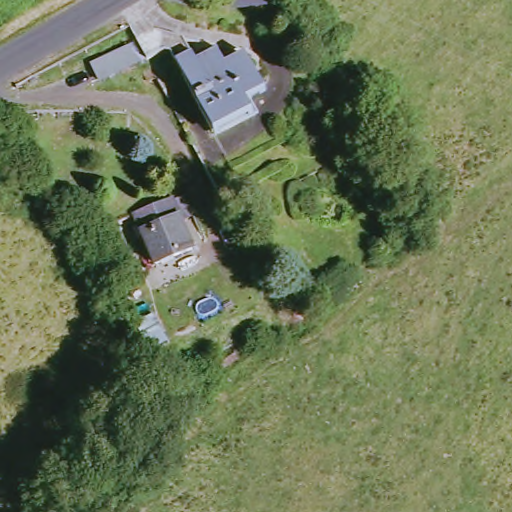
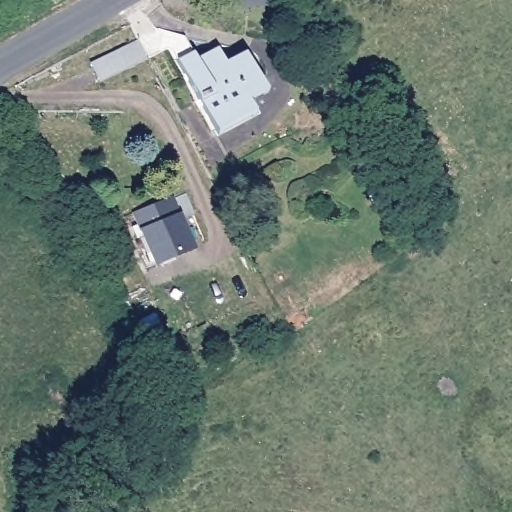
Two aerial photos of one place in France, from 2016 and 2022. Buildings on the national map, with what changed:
unchanged [(218,136),(170,49),(195,38),(207,59),(225,49),(236,64),(257,55),(275,89),(257,102),(261,115),(218,136)]
unchanged [(147,61),(105,83),(97,67),(138,44),(147,61)]
unchanged [(162,270),(140,220),(171,204),(185,194),(198,214),(186,222),(200,251),(162,270)]

